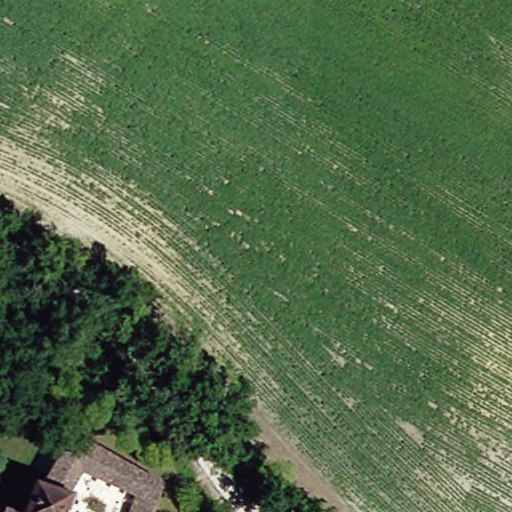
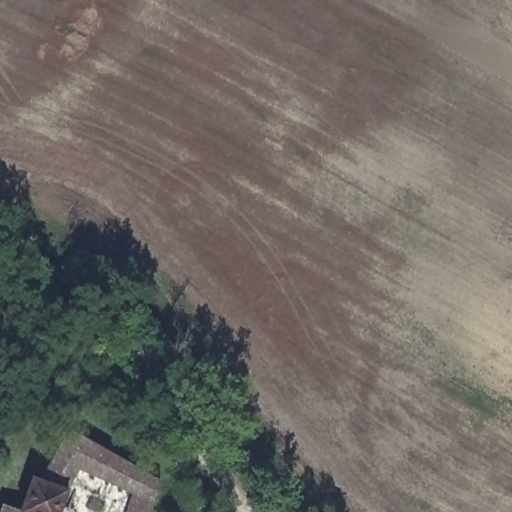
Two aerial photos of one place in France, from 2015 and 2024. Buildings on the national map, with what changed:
unchanged [(40,492),(52,496),(70,451),(165,484),(155,512),(147,512),(134,508),(79,492),(72,512),(34,512),(40,492)]
unchanged [(134,508),(147,512),(133,512),(134,508)]

